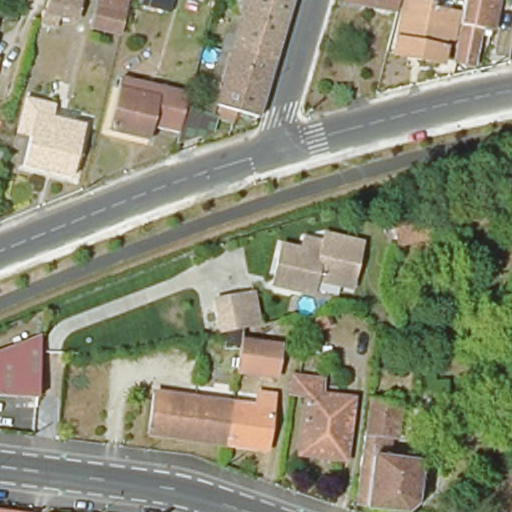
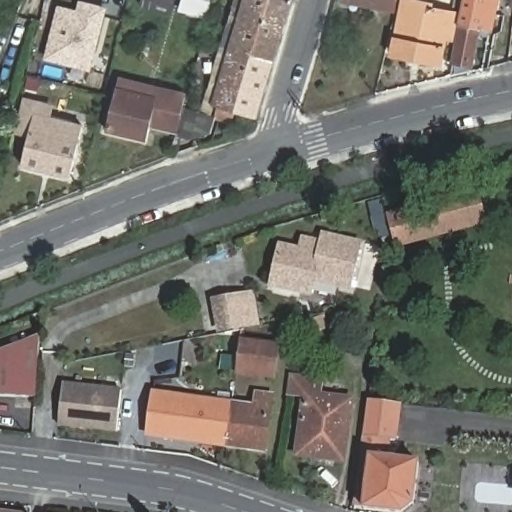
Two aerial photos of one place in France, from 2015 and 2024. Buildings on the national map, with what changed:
demolished [(46,0),(76,0),(71,22),(49,17),(46,31),(36,28),(39,14),(42,15),(46,0)]
demolished [(90,29),(96,0),(132,0),(122,40),(90,29)]
new [(150,0),(172,0),(171,5),(150,0)]
new [(207,19),(180,11),(183,0),(210,0),(212,1),(207,19)]
unchanged [(215,105),(247,0),(291,0),(257,117),(234,111),(215,105)]
unchanged [(350,0),(399,0),(397,9),(350,2),(350,0)]
unchanged [(435,9),(453,12),(453,15),(464,17),(460,33),(451,32),(447,48),(446,48),(444,58),(399,49),(401,40),(400,39),(408,0),(410,0),(436,5),(435,9)]
unchanged [(469,5),(470,0),(503,0),(501,12),(469,5)]
new [(79,1),(108,7),(91,72),(45,60),(59,5),(78,10),(79,1)]
unchanged [(469,5),(501,12),(497,29),(486,27),(478,63),(460,60),(468,24),(465,24),(469,5)]
unchanged [(177,133),(166,130),(151,126),(148,140),(123,134),(108,131),(121,77),(130,80),(161,88),(188,95),(177,133)]
unchanged [(177,133),(188,95),(215,105),(234,111),(230,126),(218,123),(215,136),(174,147),(177,133)]
unchanged [(29,135),(18,132),(26,99),(51,105),(48,114),(73,120),(72,121),(83,124),(70,177),(21,165),(29,135)]
unchanged [(479,191),(488,222),(401,246),(392,215),(479,191)]
unchanged [(359,246),(350,281),(348,289),(312,281),(309,295),(270,286),(276,263),(280,247),(318,256),(323,237),(359,246)]
unchanged [(213,307),(237,302),(250,299),(255,328),(243,331),(218,336),(213,307)]
demolished [(442,310),(435,321),(426,315),(420,311),(427,300),(442,310)]
unchanged [(280,327),(273,381),(235,376),(236,366),(240,333),(280,327)]
unchanged [(39,367),(36,397),(0,394),(0,353),(42,336),(39,367)]
new [(60,427),(65,382),(122,388),(117,432),(60,427)]
unchanged [(298,455),(304,401),(289,398),(291,382),(320,385),(318,402),(350,406),(341,466),(325,464),(298,461),(298,455)]
unchanged [(373,396),(374,392),(383,392),(382,402),(405,406),(401,442),(395,441),(393,461),(423,463),(418,508),(412,512),(393,512),(370,509),(370,507),(360,505),(363,482),(373,396)]
unchanged [(151,434),(157,393),(199,398),(193,440),(151,434)]
unchanged [(234,413),(235,404),(258,408),(260,394),(276,396),(268,451),(230,445),(234,413)]
unchanged [(193,440),(199,398),(235,404),(234,413),(230,445),(193,440)]

